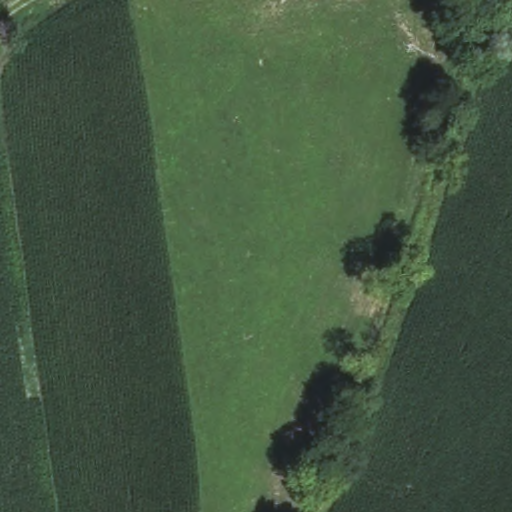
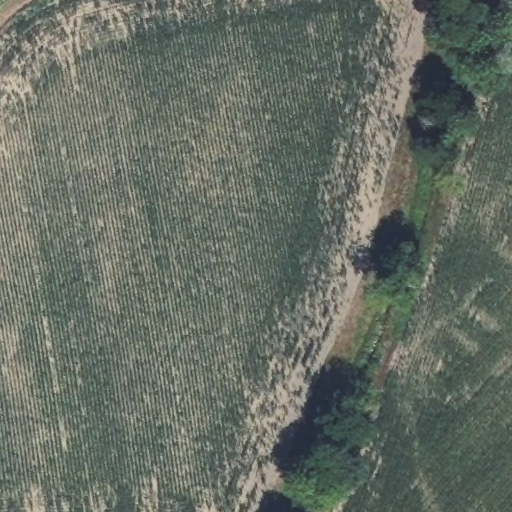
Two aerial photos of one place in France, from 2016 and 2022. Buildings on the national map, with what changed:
[]

